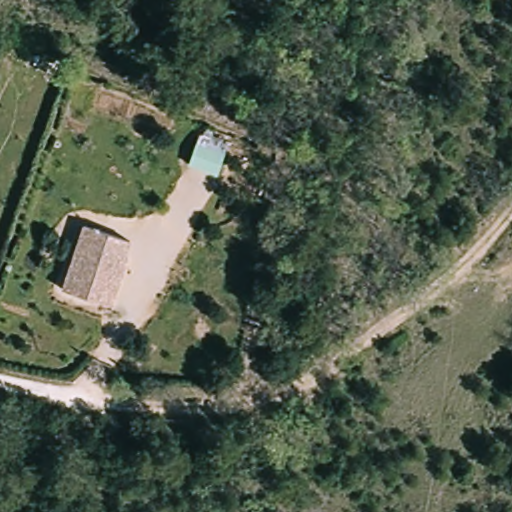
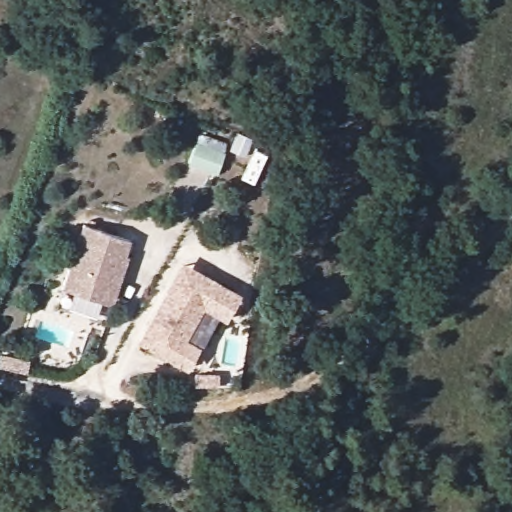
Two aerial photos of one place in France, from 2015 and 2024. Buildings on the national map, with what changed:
new [(216,175),(188,165),(195,144),(199,134),(226,142),(223,152),(216,175)]
unchanged [(128,255),(132,256),(113,305),(104,301),(65,287),(88,225),(127,239),(134,241),(128,255)]
new [(187,340),(200,348),(188,369),(137,341),(183,263),(240,294),(224,322),(203,311),(187,340)]
new [(2,358),(31,364),(29,373),(0,368),(0,365),(2,358)]
new [(197,376),(220,376),(220,385),(197,386),(197,376)]

